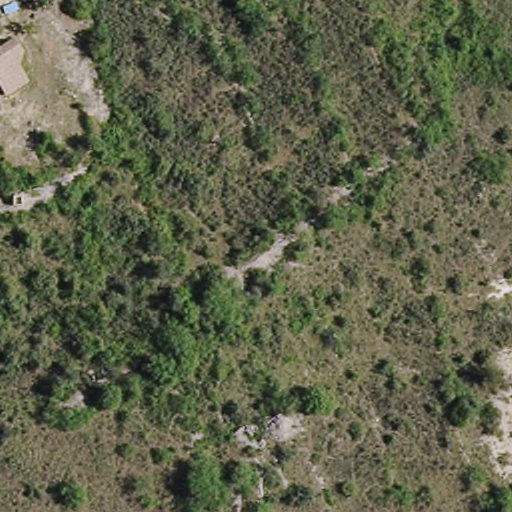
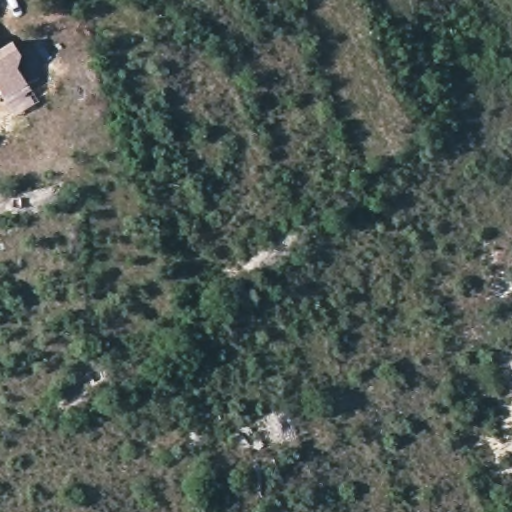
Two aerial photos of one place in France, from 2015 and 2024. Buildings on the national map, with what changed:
unchanged [(0,55),(0,48),(12,40),(20,55),(17,67),(26,82),(4,96),(0,90),(0,65),(5,62),(0,55)]
unchanged [(0,55),(5,62),(0,65),(0,55)]

